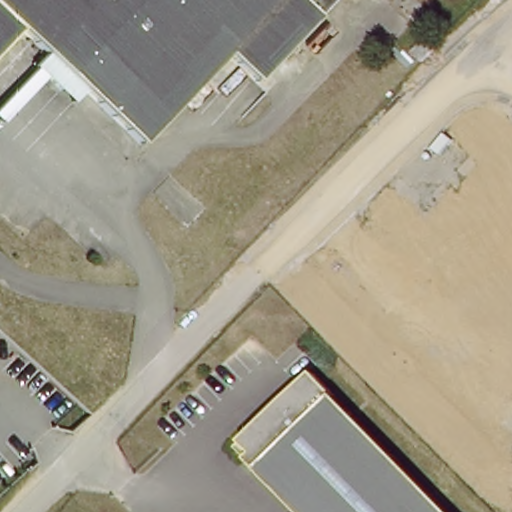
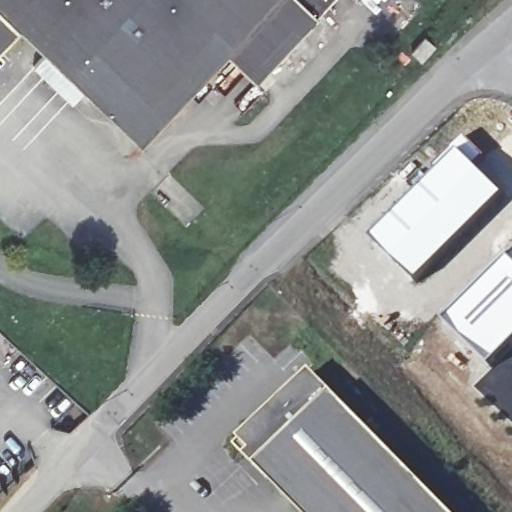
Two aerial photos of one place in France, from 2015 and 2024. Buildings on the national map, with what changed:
unchanged [(228,51),(145,141),(88,89),(76,101),(34,61),(41,55),(17,31),(0,50),(0,0),(332,0),(260,79),(228,51)]
new [(426,184),(441,162),(464,136),(483,155),(474,165),(505,195),(417,283),(372,241),(426,184)]
new [(512,254),(512,348),(493,367),(447,322),(512,254)]
unchanged [(258,470),(247,461),(252,455),(241,442),(311,373),(334,396),(449,512),(300,512),(258,470)]

